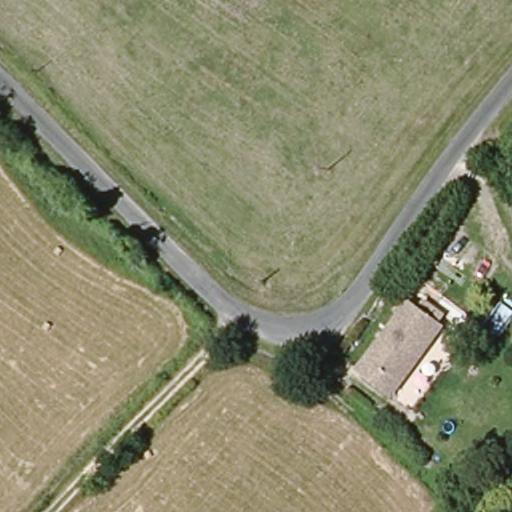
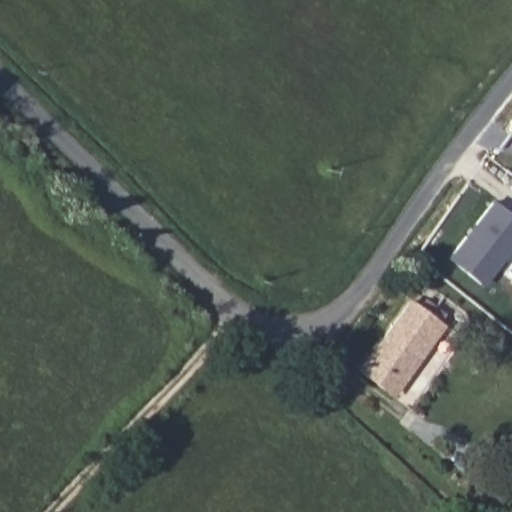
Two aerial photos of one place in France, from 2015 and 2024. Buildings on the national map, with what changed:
new [(495,204),(512,218),(512,249),(481,286),(448,258),(467,237),(477,225),(495,204)]
unchanged [(410,299),(418,304),(422,297),(442,310),(437,317),(442,320),(396,389),(365,369),(410,299)]

